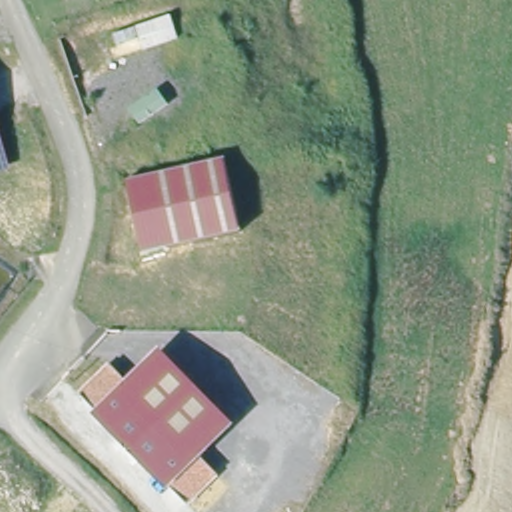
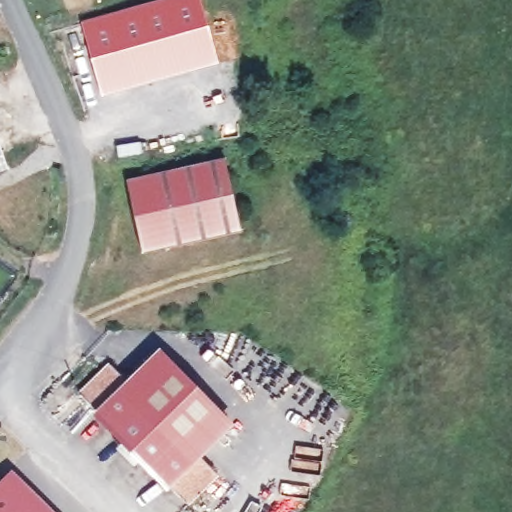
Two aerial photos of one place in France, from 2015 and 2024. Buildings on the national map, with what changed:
new [(201,0),(218,63),(101,94),(81,21),(160,0),(201,0)]
demolished [(109,49),(117,47),(114,35),(174,16),(179,40),(113,62),(109,49)]
unchanged [(0,172),(0,138),(9,169),(0,172)]
unchanged [(244,236),(145,257),(129,183),(228,162),(244,236)]
unchanged [(229,430),(199,460),(216,477),(185,507),(81,401),(114,370),(130,388),(160,358),(229,430)]
new [(0,484),(13,471),(55,512),(0,512),(0,484)]

